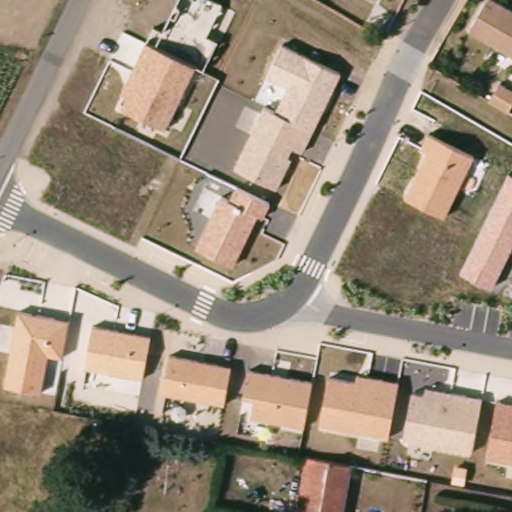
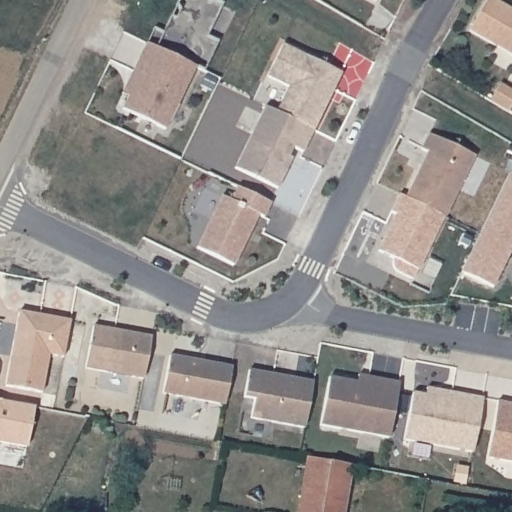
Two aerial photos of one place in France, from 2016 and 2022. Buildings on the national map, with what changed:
unchanged [(207,36),(218,41),(204,72),(195,67),(144,42),(152,25),(162,30),(177,0),(224,0),(207,36)]
unchanged [(378,2),(373,0),(379,0),(378,2)]
unchanged [(512,5),(512,50),(469,25),(483,0),(504,0),(512,5)]
unchanged [(195,67),(166,129),(121,109),(127,94),(120,90),(144,42),(195,67)]
unchanged [(343,72),(303,153),(292,149),(288,156),(292,157),(277,190),(232,169),(262,105),(276,111),(286,87),(264,77),(281,42),(343,72)]
unchanged [(512,92),(512,115),(495,106),(506,88),(512,92)]
unchanged [(476,155),(444,217),(403,196),(426,152),(420,149),(429,132),(476,155)]
unchanged [(512,173),(512,249),(492,288),(458,270),(507,171),(512,173)]
unchanged [(263,219),(257,215),(234,266),(196,249),(222,194),(231,199),(237,184),(271,202),(263,219)]
new [(444,217),(412,277),(392,267),(395,260),(376,250),(393,214),(389,212),(399,193),(403,196),(444,217)]
unchanged [(70,318),(63,358),(48,356),(42,393),(4,387),(18,310),(70,318)]
unchanged [(144,379),(84,370),(91,325),(152,335),(144,379)]
unchanged [(232,365),(224,405),(161,393),(168,352),(232,365)]
unchanged [(304,425),(250,416),(253,400),(242,398),(247,368),(312,378),(304,425)]
unchanged [(389,439),(317,427),(327,375),(355,380),(357,373),(399,380),(389,439)]
unchanged [(483,396),(473,453),(401,441),(410,392),(425,394),(427,386),(483,396)]
unchanged [(487,458),(496,402),(512,406),(512,463),(487,458)]
unchanged [(315,512),(294,512),(302,459),(324,462),(315,512)]
unchanged [(346,467),(338,512),(315,512),(324,462),(335,465),(346,467)]

